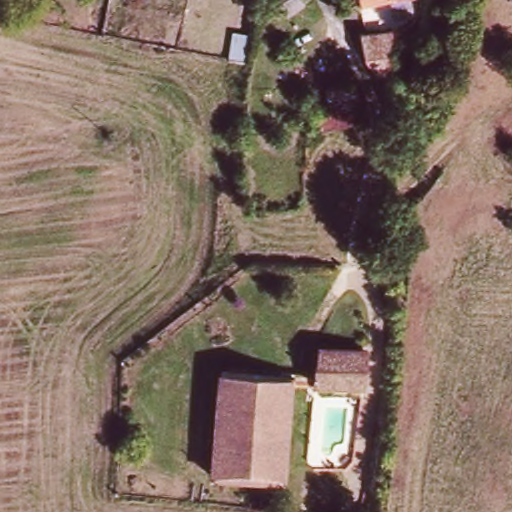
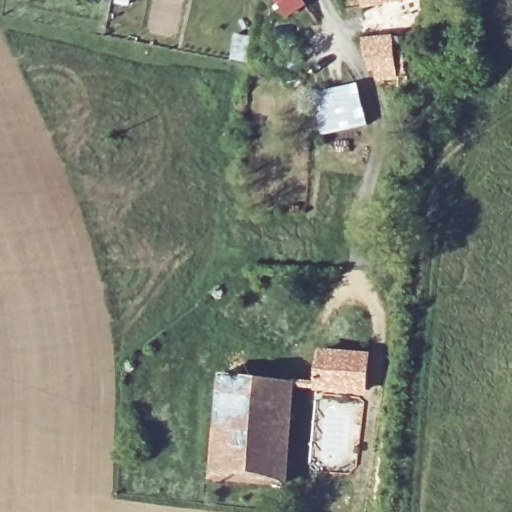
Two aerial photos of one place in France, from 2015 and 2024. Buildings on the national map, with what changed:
unchanged [(304,0),(304,1),(290,9),(285,0),(304,0)]
unchanged [(360,11),(357,0),(412,0),(412,1),(360,11)]
unchanged [(393,30),(391,72),(371,71),(361,48),(362,29),(393,30)]
new [(357,81),(367,125),(320,136),(309,93),(357,81)]
unchanged [(360,394),(313,392),(315,358),(361,360),(360,394)]
unchanged [(285,386),(279,488),(212,484),(219,382),(285,386)]

